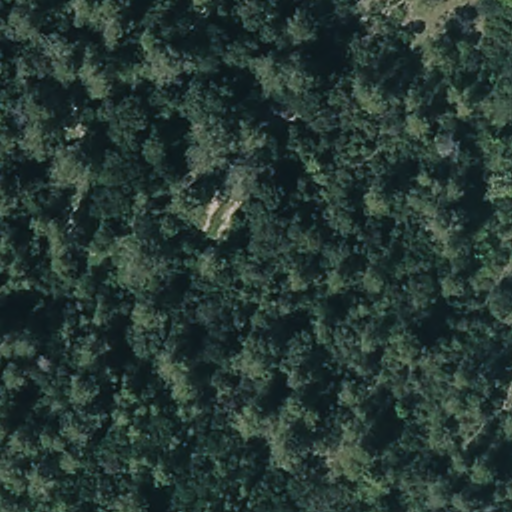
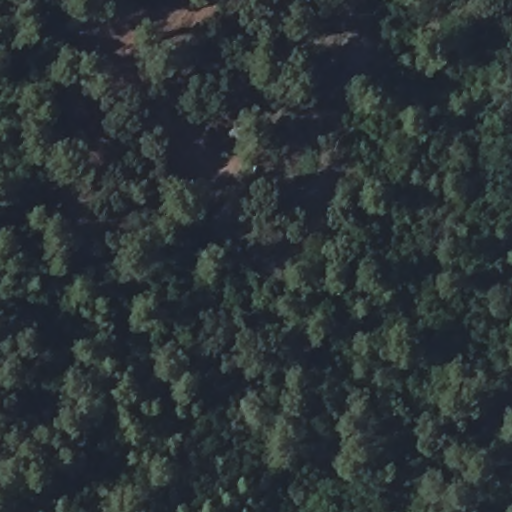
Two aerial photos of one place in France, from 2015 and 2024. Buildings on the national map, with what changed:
[]

